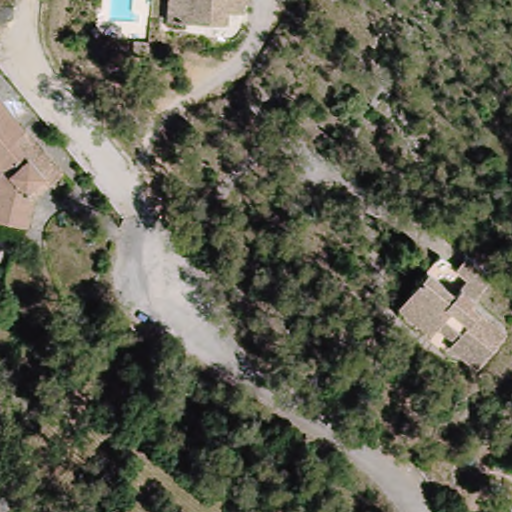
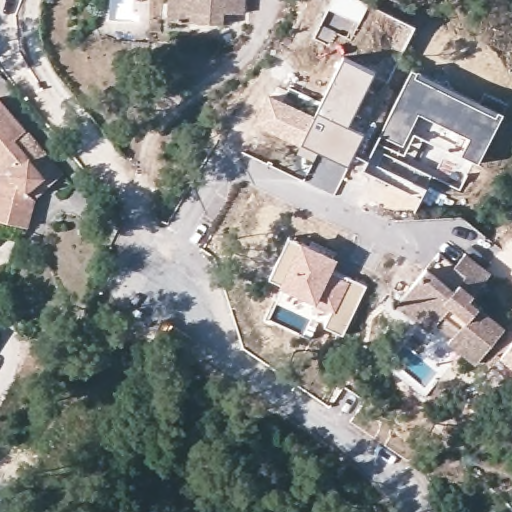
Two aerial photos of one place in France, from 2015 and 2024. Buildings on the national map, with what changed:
unchanged [(224,12),(223,24),(185,22),(165,21),(166,0),(245,0),(245,13),(235,12),(224,12)]
new [(321,24),(326,26),(334,11),(327,9),(331,0),(362,0),(369,4),(349,39),(336,31),(331,45),(315,37),(321,24)]
unchanged [(148,52),(131,51),(133,41),(150,42),(148,52)]
new [(374,70),(348,125),(363,132),(334,196),(303,181),(313,158),(297,150),(299,147),(297,146),(251,124),(266,91),(313,114),(342,55),(374,70)]
new [(479,100),(484,91),(507,103),(503,111),(478,163),(414,134),(403,155),(376,143),(412,67),(479,100)]
unchanged [(0,219),(0,98),(63,175),(50,186),(35,198),(27,226),(0,219)]
new [(343,334),(324,325),(330,313),(314,304),(267,277),(288,235),(338,257),(333,268),(366,285),(343,334)]
unchanged [(431,323),(424,331),(391,303),(421,267),(448,290),(461,275),(450,265),(461,252),(486,273),(464,300),(499,329),(470,363),(444,341),(447,337),(431,323)]

